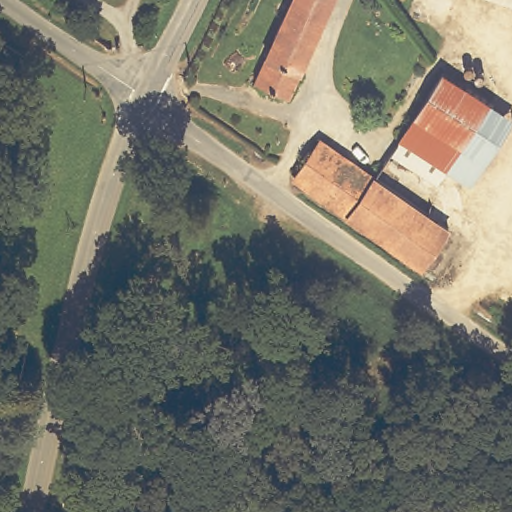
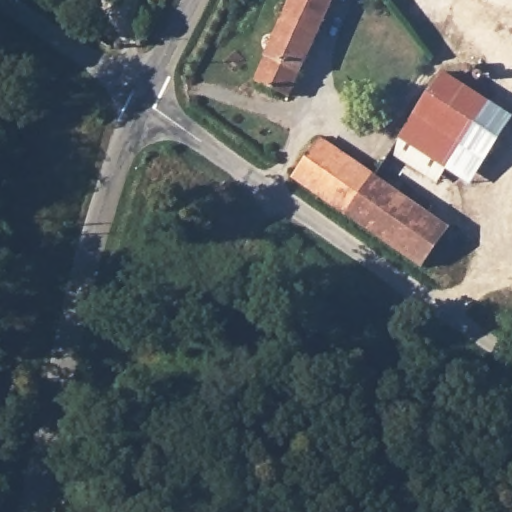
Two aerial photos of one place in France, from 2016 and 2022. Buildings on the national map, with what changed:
unchanged [(285,88),(279,102),(265,95),(270,84),(258,77),(290,0),(339,0),(298,94),(285,88)]
unchanged [(510,91),(512,92),(512,95),(500,112),(444,199),(373,154),(442,47),(510,91)]
unchanged [(353,212),(296,173),(324,134),(379,172),(353,212)]
unchanged [(353,212),(379,172),(449,222),(424,262),(353,212)]

